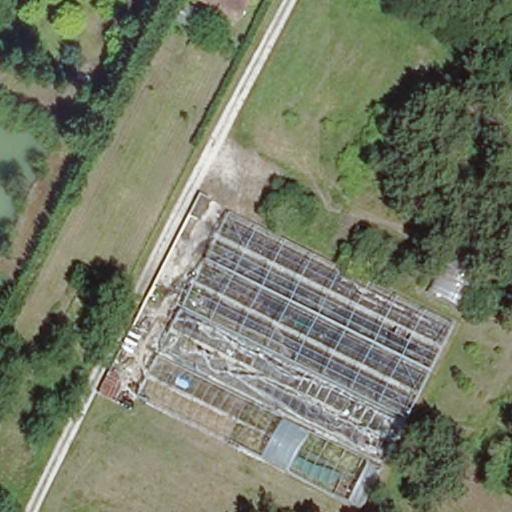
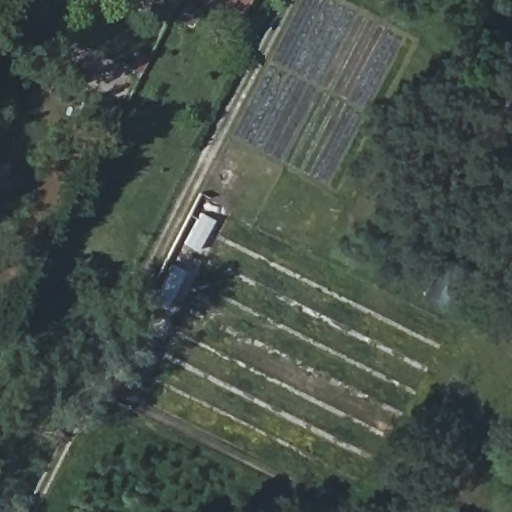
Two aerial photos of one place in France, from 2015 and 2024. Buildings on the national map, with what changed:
unchanged [(205,0),(249,0),(241,19),(205,0)]
demolished [(362,508),(139,396),(230,214),(455,322),(362,508)]

